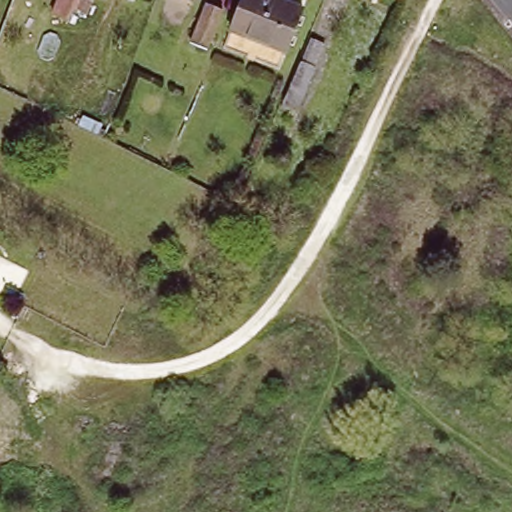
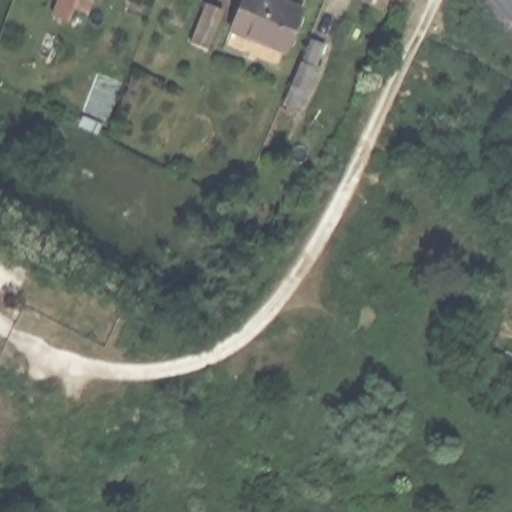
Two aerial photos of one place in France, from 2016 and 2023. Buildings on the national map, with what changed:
unchanged [(68,27),(52,21),(60,0),(80,0),(90,4),(85,18),(74,13),(69,26),(68,27)]
unchanged [(242,0),(281,0),(301,9),(282,53),(230,31),(242,0)]
unchanged [(401,3),(395,0),(402,0),(401,3)]
unchanged [(206,51),(191,45),(207,5),(222,11),(206,51)]
unchanged [(316,70),(298,110),(290,107),(287,112),(282,109),(302,63),(316,70)]

